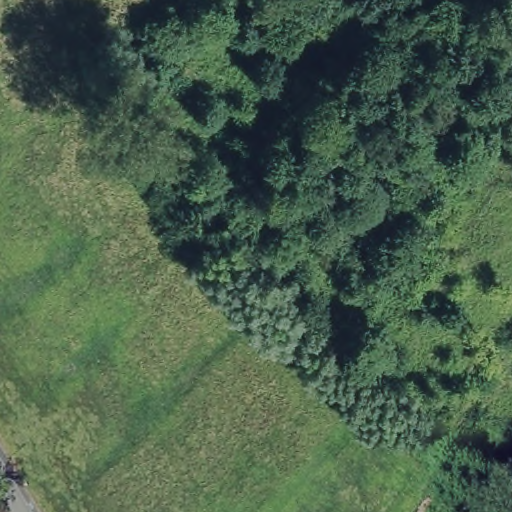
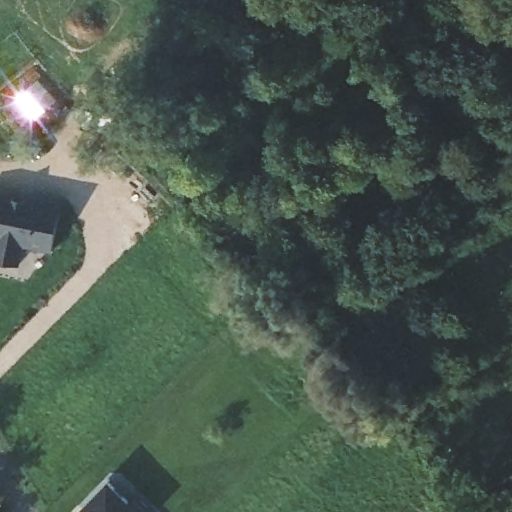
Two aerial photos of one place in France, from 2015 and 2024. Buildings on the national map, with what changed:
new [(31,201),(32,198),(62,204),(52,251),(22,245),(18,265),(0,262),(0,195),(31,201)]
new [(109,482),(129,501),(135,494),(153,512),(85,512),(82,509),(109,482)]

